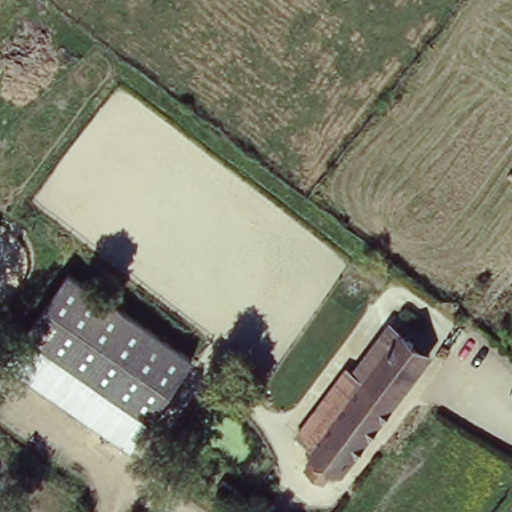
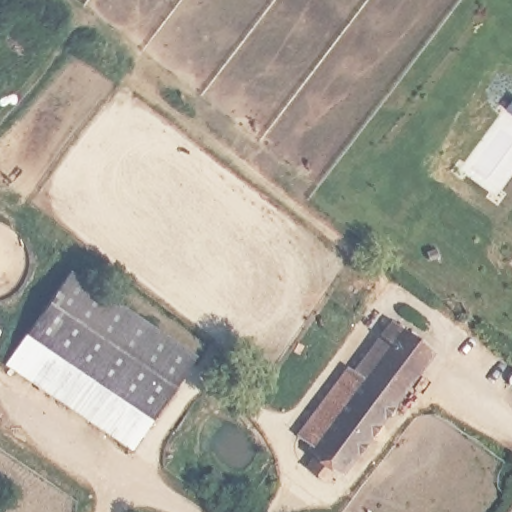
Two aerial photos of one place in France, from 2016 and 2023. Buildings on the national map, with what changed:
unchanged [(68,267),(193,353),(129,445),(5,359),(68,267)]
unchanged [(350,369),(357,373),(394,324),(432,354),(346,469),(342,465),(329,481),(311,467),(322,451),(303,434),(350,369)]

